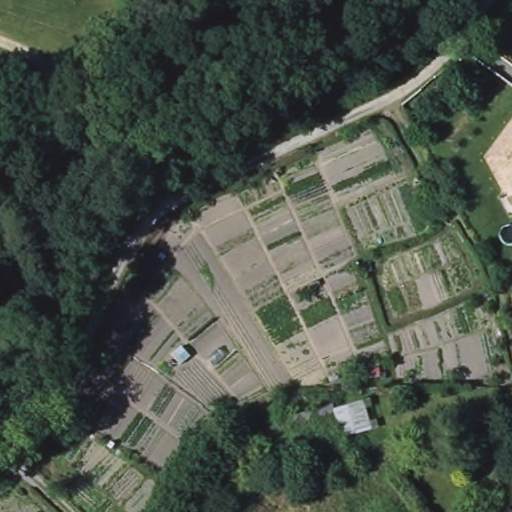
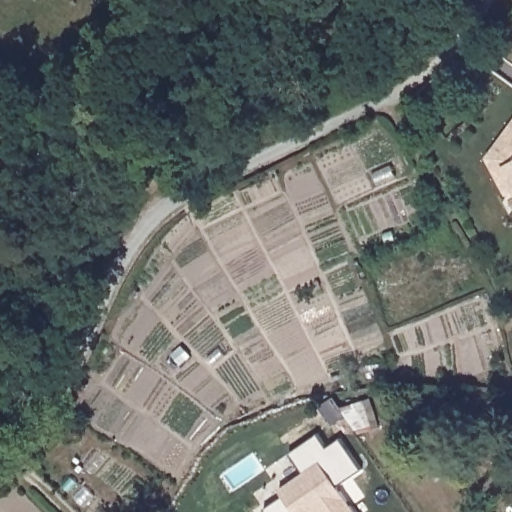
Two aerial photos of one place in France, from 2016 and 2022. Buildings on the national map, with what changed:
unchanged [(512,126),(512,190),(507,192),(489,157),(512,126)]
demolished [(338,409),(340,414),(342,422),(250,449),(247,437),(338,409)]
new [(265,509),(283,496),(277,489),(303,471),(290,451),(318,433),(327,446),(341,438),(362,468),(337,484),(356,512),(267,512),(265,509)]

